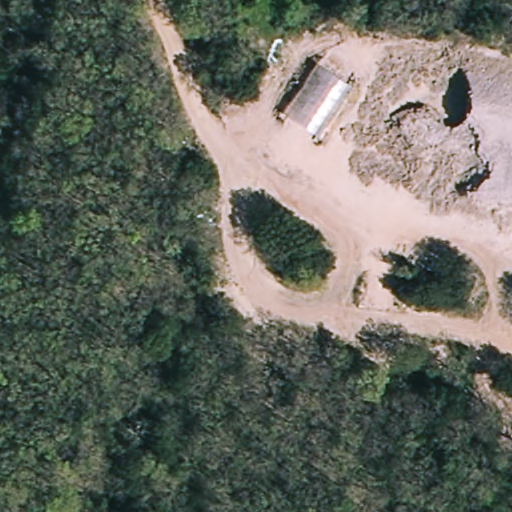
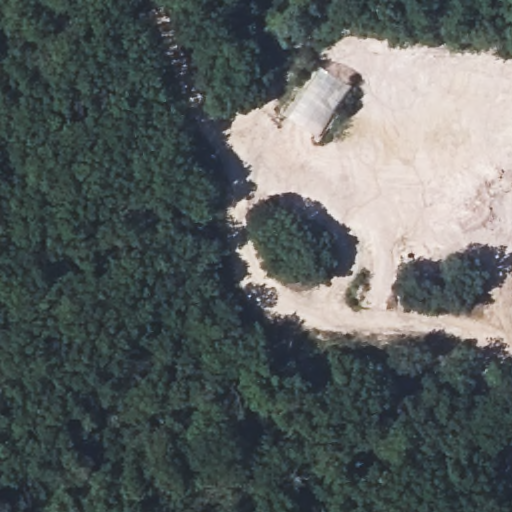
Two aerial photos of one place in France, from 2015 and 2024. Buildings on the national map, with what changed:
unchanged [(323,130),(296,110),(321,67),(350,88),(323,130)]

